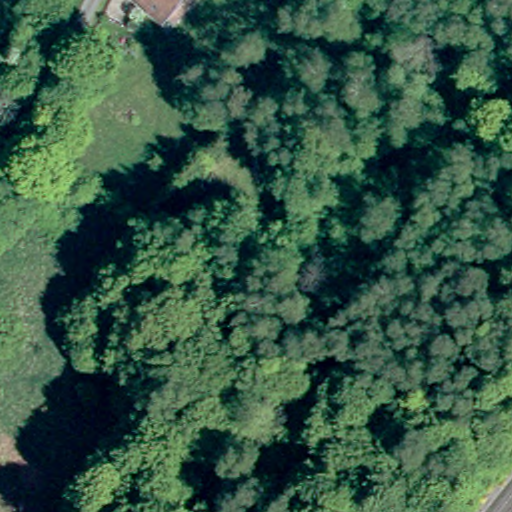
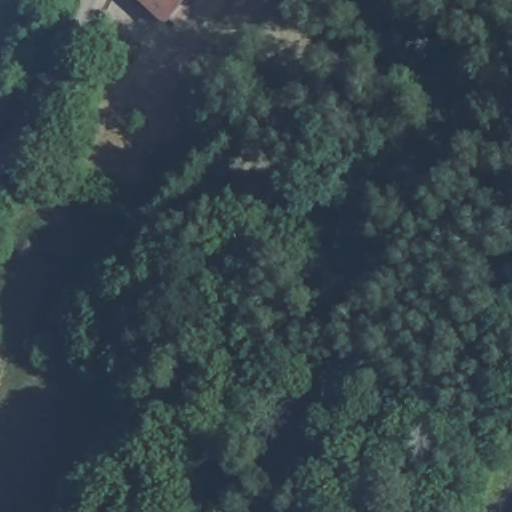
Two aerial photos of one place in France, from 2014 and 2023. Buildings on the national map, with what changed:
unchanged [(171,26),(142,0),(194,0),(171,26)]

